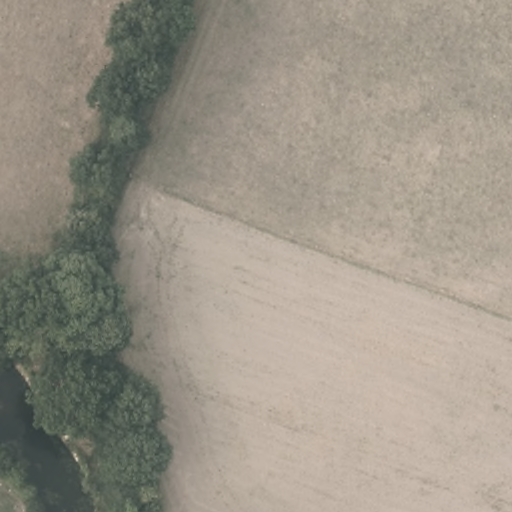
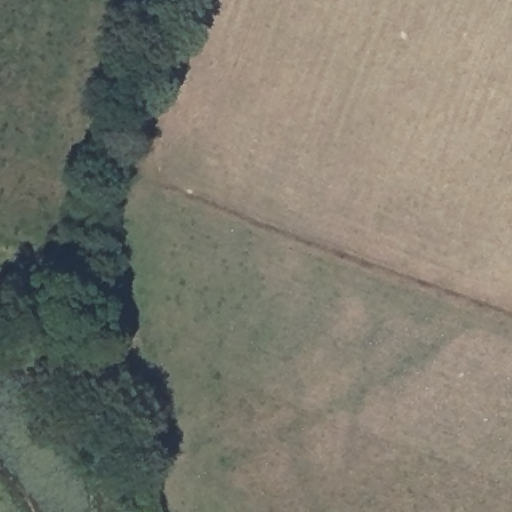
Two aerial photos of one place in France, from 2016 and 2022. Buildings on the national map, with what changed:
[]

